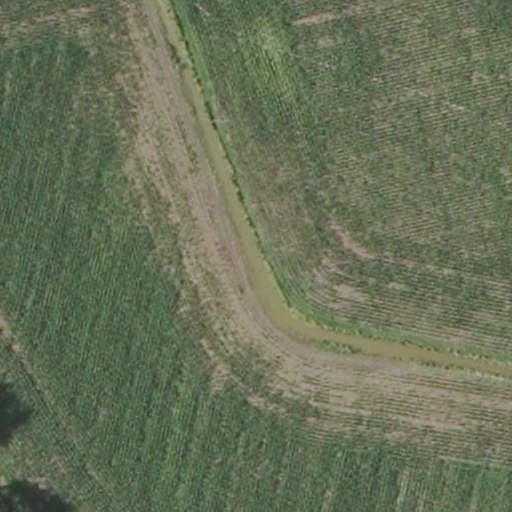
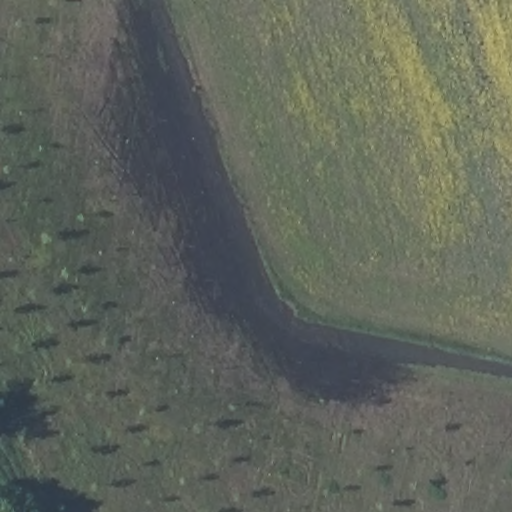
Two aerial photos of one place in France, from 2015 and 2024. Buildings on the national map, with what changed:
[]

